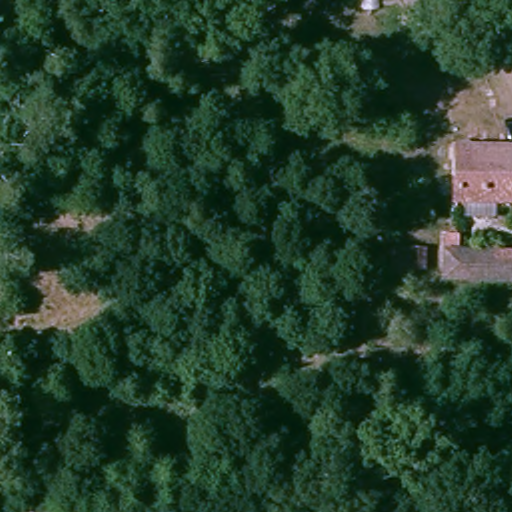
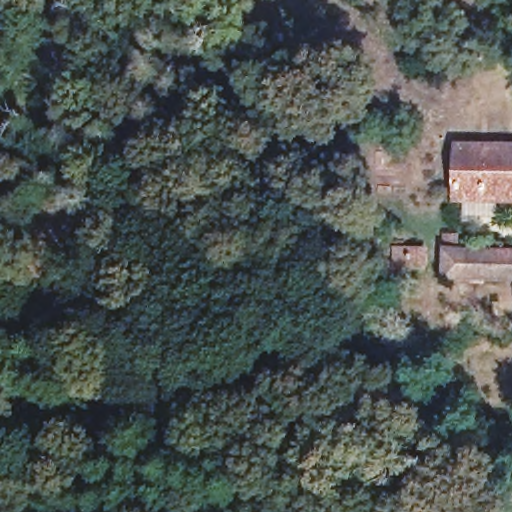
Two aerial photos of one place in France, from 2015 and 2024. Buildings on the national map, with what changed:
unchanged [(512,147),(512,201),(455,203),(455,146),(512,147)]
unchanged [(440,230),(456,230),(457,246),(512,245),(512,279),(440,279),(440,230)]
unchanged [(417,243),(417,260),(393,261),(393,244),(417,243)]

